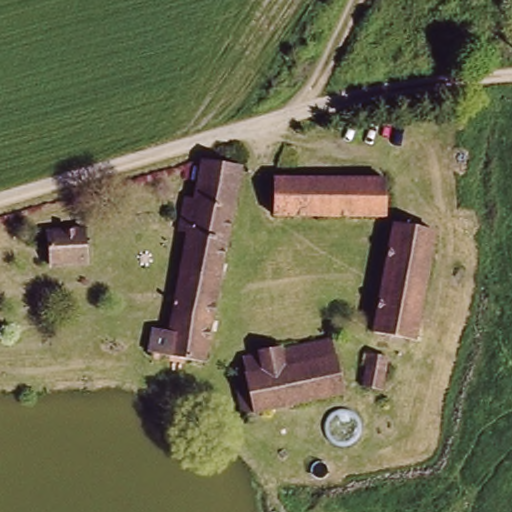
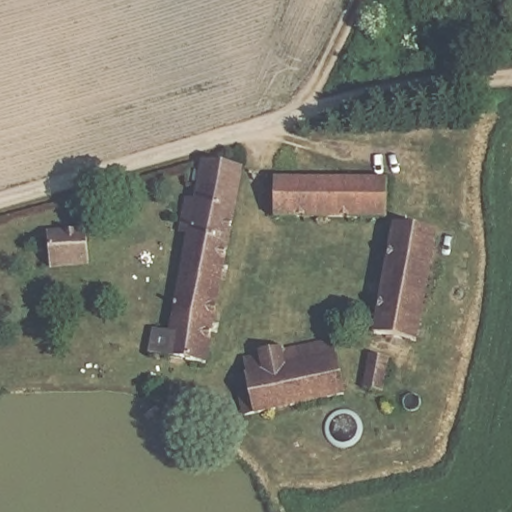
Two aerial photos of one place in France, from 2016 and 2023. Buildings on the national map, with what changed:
unchanged [(191,192),(190,192),(190,190),(194,160),(205,162),(207,152),(250,160),(240,199),(191,192)]
unchanged [(387,172),(386,210),(275,208),(275,170),(277,171),(303,171),(387,172)]
unchanged [(240,199),(240,202),(210,356),(171,349),(156,346),(160,323),(175,325),(193,226),(186,225),(191,192),(240,199)]
unchanged [(436,226),(417,335),(376,328),(395,218),(436,226)]
unchanged [(90,223),(91,258),(53,261),(52,249),(51,225),(90,223)]
unchanged [(270,406),(241,412),(234,371),(245,369),(241,353),(332,336),(343,392),(270,406)]
unchanged [(361,389),(368,353),(385,356),(380,385),(364,388),(361,389)]

